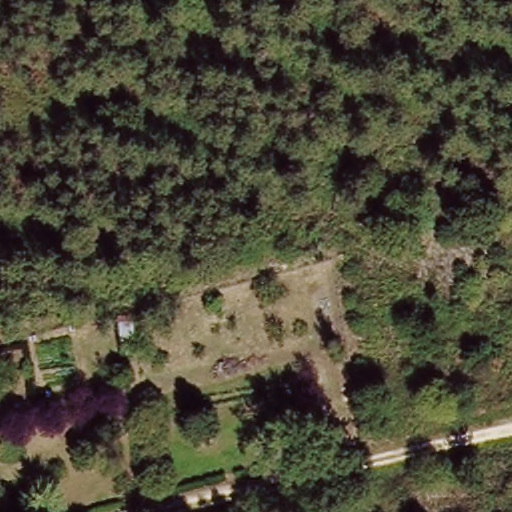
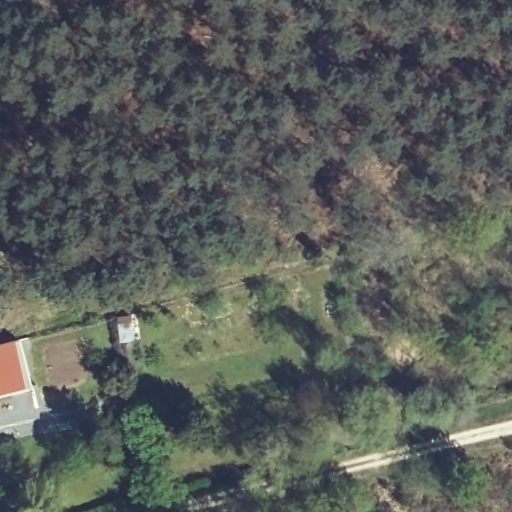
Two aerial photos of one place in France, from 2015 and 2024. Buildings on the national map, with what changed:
new [(20,338),(33,389),(0,397),(0,343),(20,338)]

